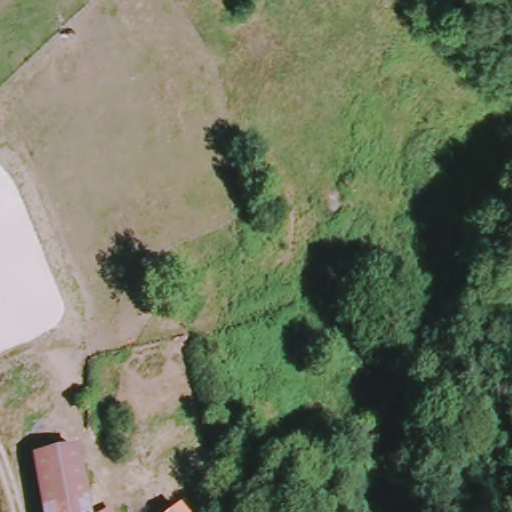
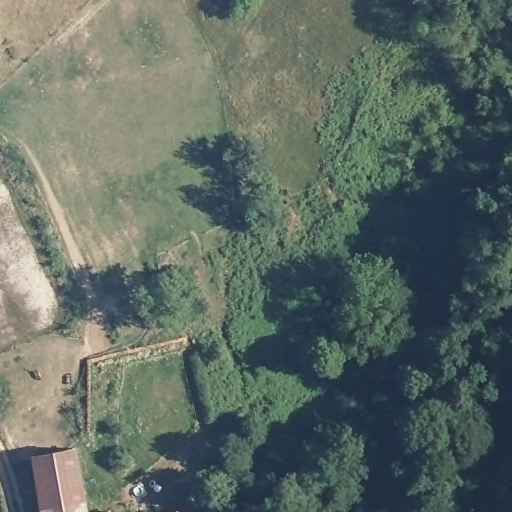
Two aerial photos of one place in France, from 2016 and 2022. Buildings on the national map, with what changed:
unchanged [(78,452),(99,511),(119,507),(120,512),(43,512),(34,457),(78,452)]

